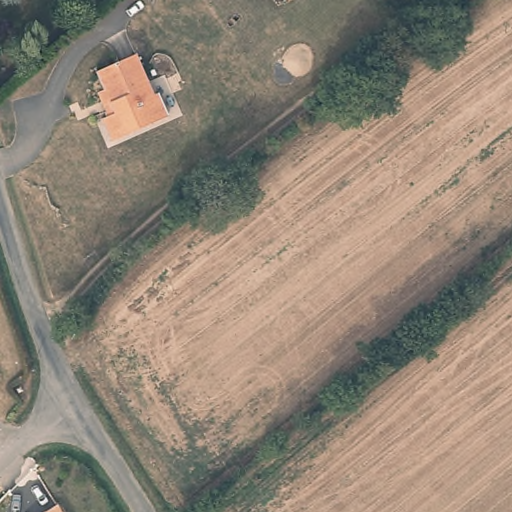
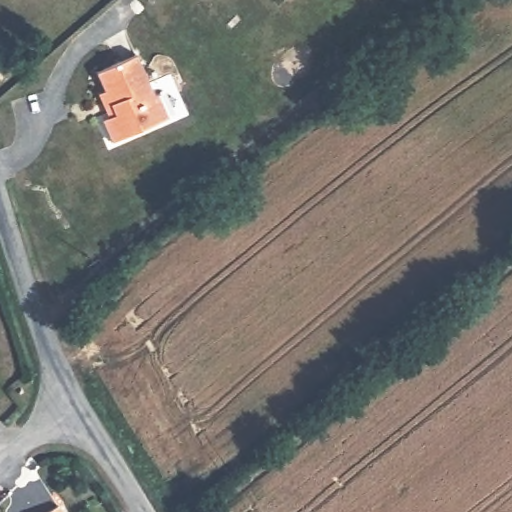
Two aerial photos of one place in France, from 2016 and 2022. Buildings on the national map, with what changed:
unchanged [(101,113),(112,107),(95,70),(132,50),(151,89),(157,87),(168,110),(112,136),(101,113)]
unchanged [(56,512),(46,512),(54,507),(56,512)]

